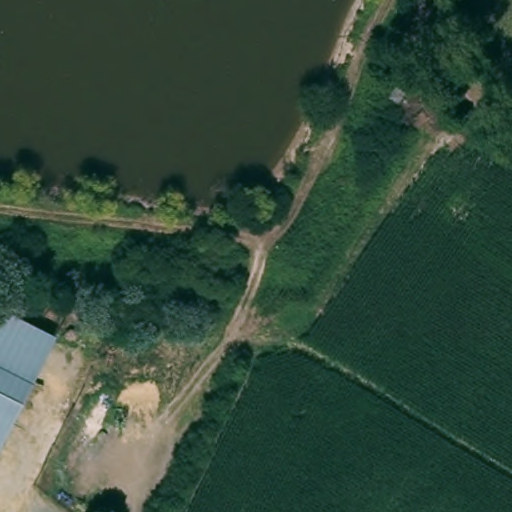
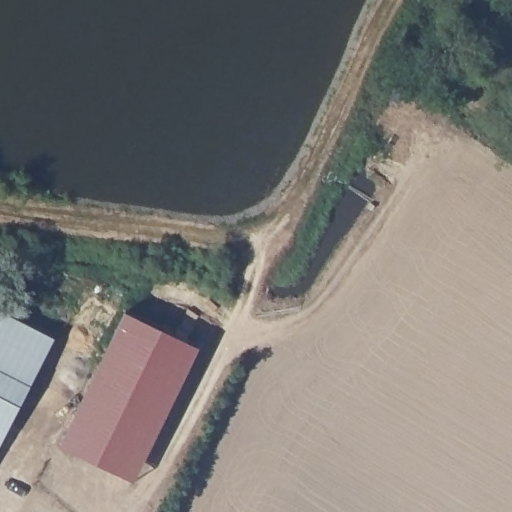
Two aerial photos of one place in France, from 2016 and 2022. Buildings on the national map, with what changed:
unchanged [(14,317),(0,344),(0,310),(14,317)]
new [(126,311),(198,346),(135,480),(62,444),(126,311)]
unchanged [(56,336),(0,443),(0,344),(14,317),(56,336)]

